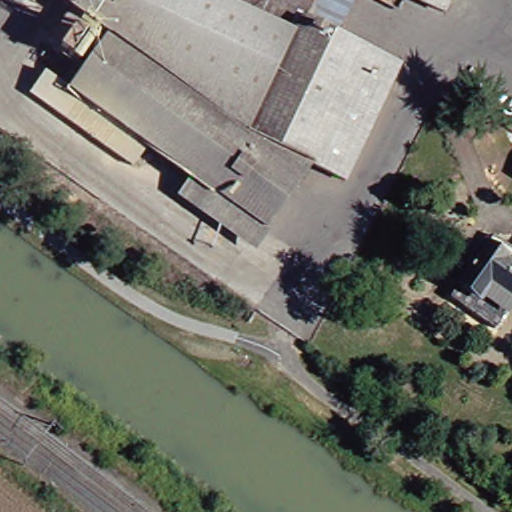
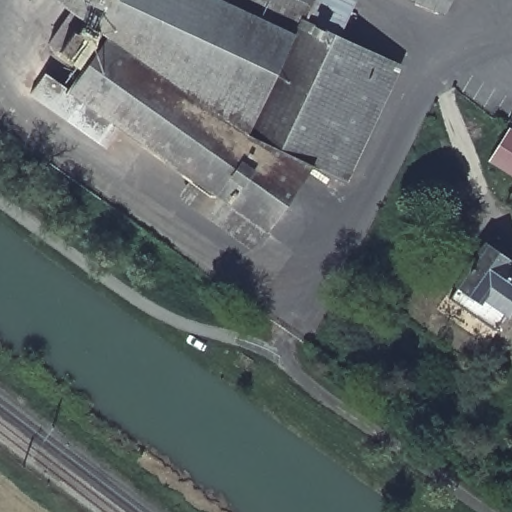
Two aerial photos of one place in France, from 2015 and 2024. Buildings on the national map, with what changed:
unchanged [(35,1),(36,0),(44,0),(41,5),(35,1)]
unchanged [(343,40),(403,68),(350,183),(316,166),(270,231),(199,180),(152,147),(137,168),(35,95),(50,75),(75,92),(90,71),(82,66),(54,46),(76,14),(57,0),(315,0),(305,21),(343,40)]
unchanged [(343,40),(305,21),(315,0),(356,0),(360,2),(343,40)]
unchanged [(419,0),(455,0),(448,14),(419,0)]
new [(510,129),(512,130),(512,175),(488,160),(510,129)]
unchanged [(255,251),(185,200),(199,180),(270,231),(255,251)]
unchanged [(512,252),(512,306),(494,332),(450,300),(493,238),(512,252)]

